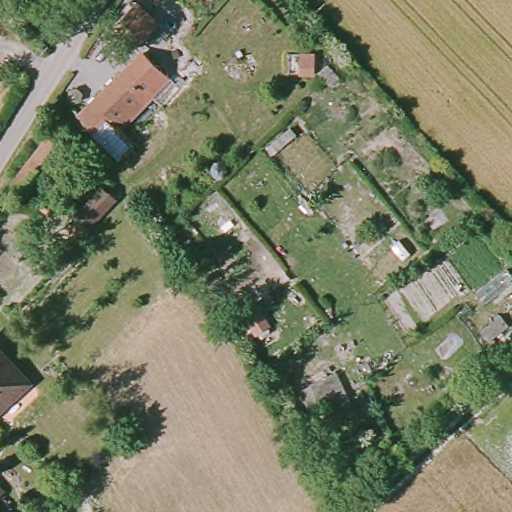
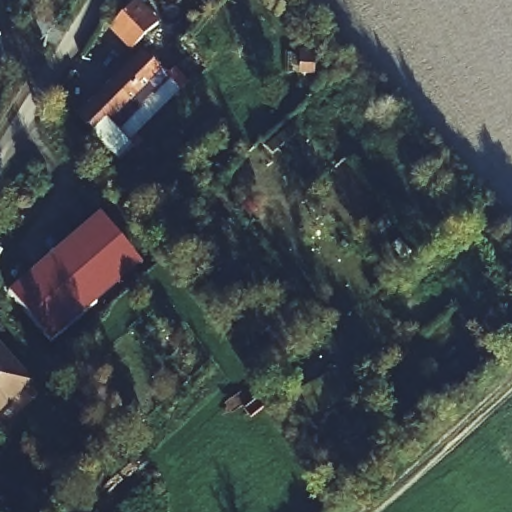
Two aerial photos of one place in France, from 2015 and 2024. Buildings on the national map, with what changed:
unchanged [(103,29),(133,2),(156,25),(124,54),(103,29)]
unchanged [(125,139),(110,155),(77,118),(130,61),(135,67),(142,61),(151,71),(145,76),(144,77),(153,89),(154,93),(115,129),(125,139)]
demolished [(40,112),(50,123),(40,134),(38,132),(32,126),(40,112)]
demolished [(47,141),(72,158),(22,211),(0,190),(47,141)]
new [(9,292),(101,213),(145,265),(52,340),(9,292)]
demolished [(43,221),(59,237),(42,255),(25,238),(43,221)]
unchanged [(28,385),(0,411),(0,357),(28,385)]

